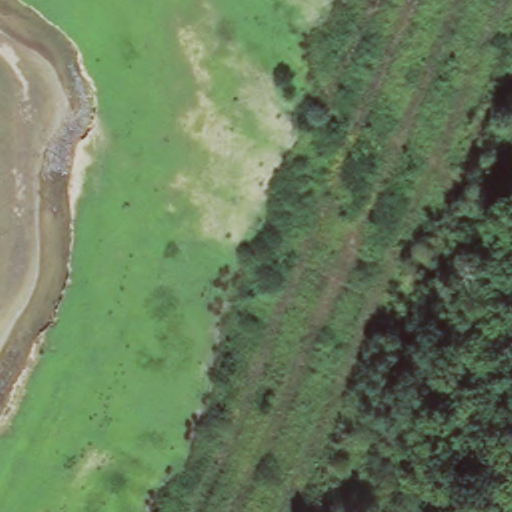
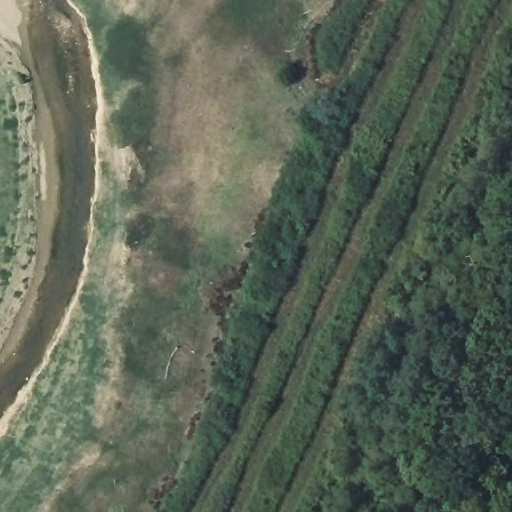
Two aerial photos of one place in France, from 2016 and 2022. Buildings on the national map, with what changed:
[]

